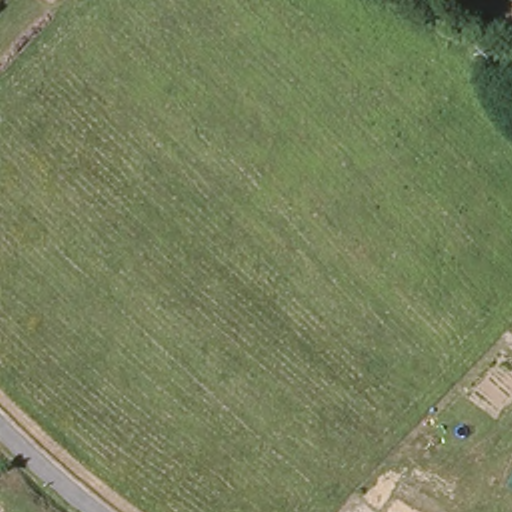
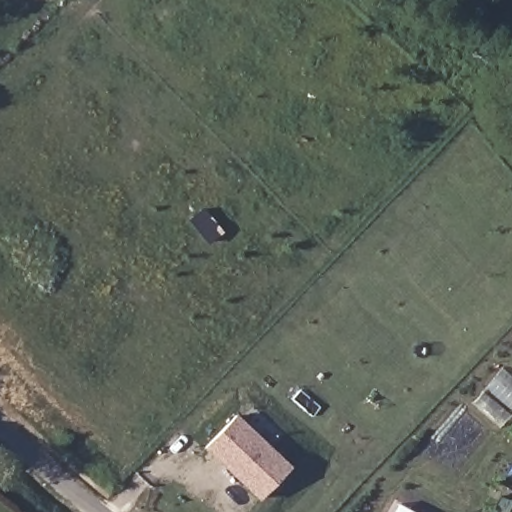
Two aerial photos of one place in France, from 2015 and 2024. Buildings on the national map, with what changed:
new [(291,467),(259,501),(204,447),(236,414),(291,467)]

